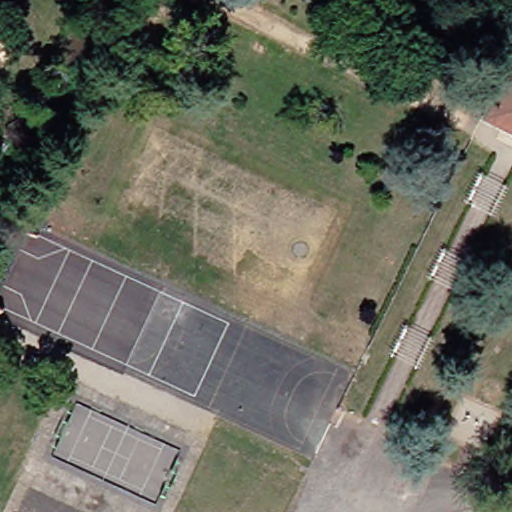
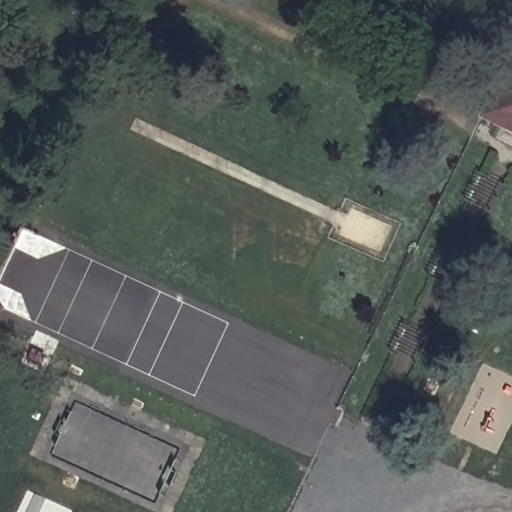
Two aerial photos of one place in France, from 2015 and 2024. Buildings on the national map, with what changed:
unchanged [(510,50),(512,50),(512,138),(476,121),(510,50)]

